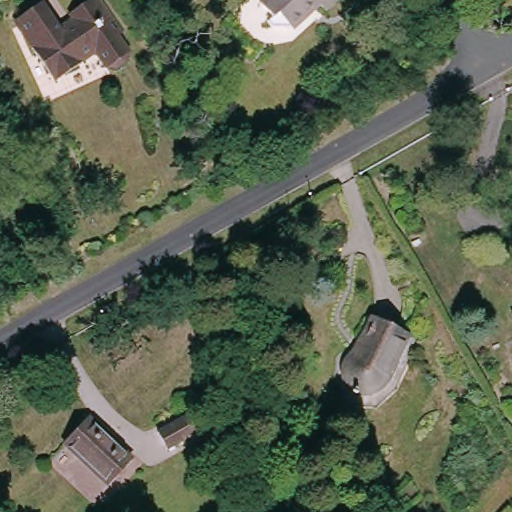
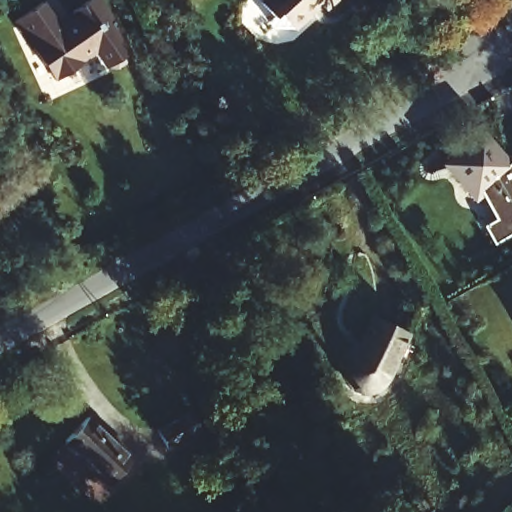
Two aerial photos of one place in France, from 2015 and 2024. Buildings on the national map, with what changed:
unchanged [(45,2),(67,31),(81,20),(77,15),(75,13),(74,12),(75,11),(76,9),(77,8),(82,5),(88,0),(114,0),(132,24),(128,27),(141,43),(137,46),(137,51),(129,58),(124,57),(121,59),(108,43),(95,54),(96,55),(80,67),(76,62),(59,75),(38,48),(39,48),(20,22),(45,2)]
unchanged [(317,10),(311,6),(284,29),(277,28),(270,17),(278,10),(269,0),(329,0),(317,10)]
new [(510,158),(512,163),(512,233),(494,243),(485,226),(497,220),(482,194),(474,202),(440,165),(480,129),(510,158)]
unchanged [(390,368),(382,380),(368,387),(357,394),(350,392),(348,388),(347,382),(347,370),(345,360),(347,355),(359,348),(381,312),(409,326),(390,368)]
unchanged [(170,445),(161,427),(191,410),(201,428),(170,445)]
unchanged [(130,456),(109,478),(61,435),(85,415),(130,456)]

